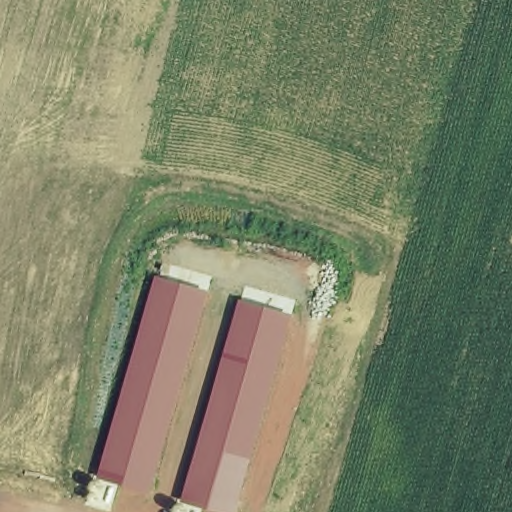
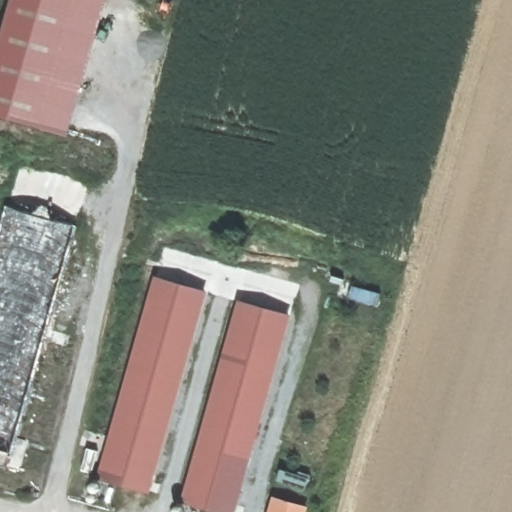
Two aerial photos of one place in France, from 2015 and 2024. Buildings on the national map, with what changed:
new [(0,114),(0,42),(12,0),(108,0),(70,134),(0,114)]
new [(15,452),(12,451),(7,465),(0,464),(0,232),(7,206),(81,226),(15,452)]
unchanged [(207,291),(151,491),(99,477),(155,277),(207,291)]
unchanged [(236,512),(220,512),(183,501),(238,300),(291,314),(236,512)]
new [(268,512),(273,495),(310,506),(308,512),(268,512)]

